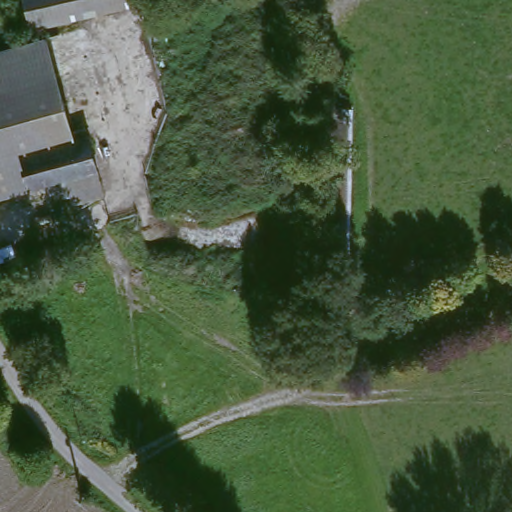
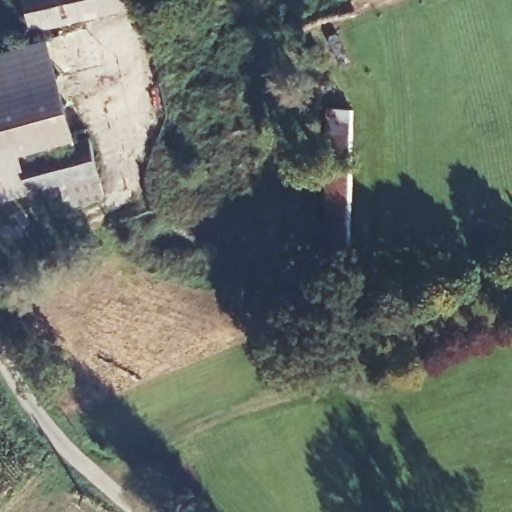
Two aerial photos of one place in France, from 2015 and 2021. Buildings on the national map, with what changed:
unchanged [(36,33),(28,0),(132,0),(133,6),(36,33)]
unchanged [(80,133),(53,140),(23,148),(29,189),(0,197),(0,47),(51,33),(80,133)]
unchanged [(359,102),(353,252),(319,252),(326,101),(359,102)]

